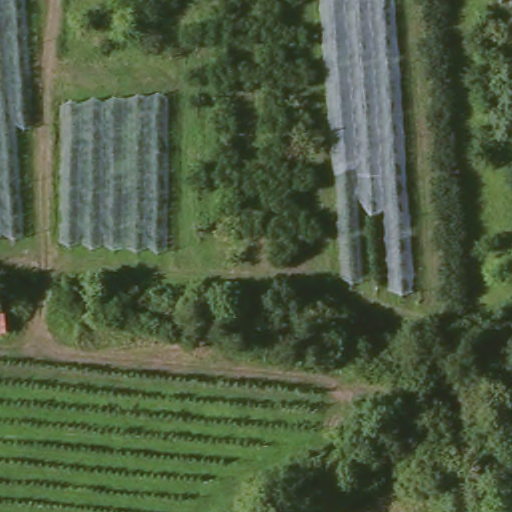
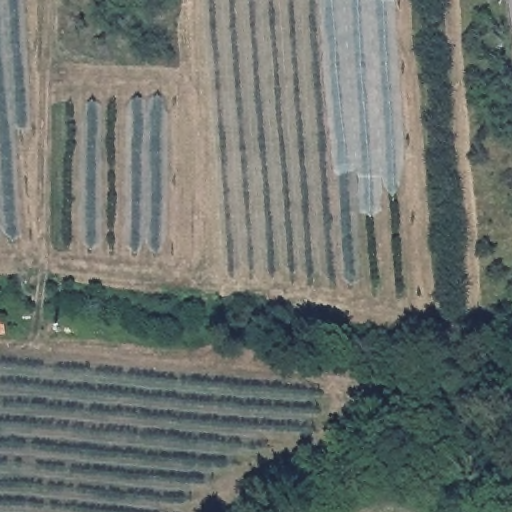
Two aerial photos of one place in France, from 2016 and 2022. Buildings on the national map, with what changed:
unchanged [(3,335),(0,335),(0,310),(3,335)]

